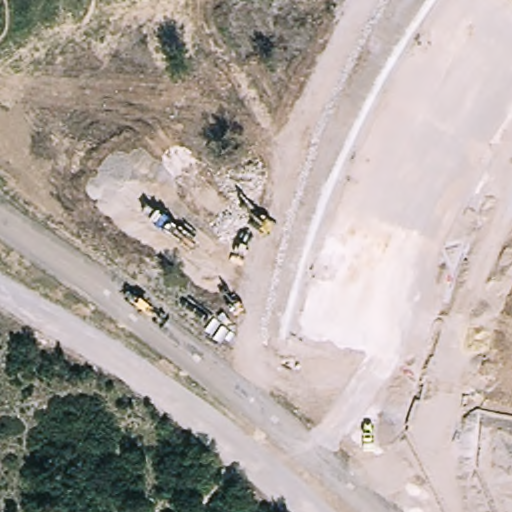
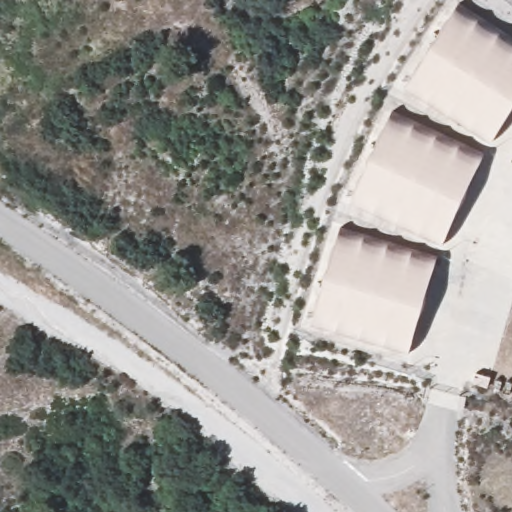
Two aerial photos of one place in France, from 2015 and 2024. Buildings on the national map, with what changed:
new [(399,87),(455,0),(457,0),(512,37),(512,108),(489,144),(399,87)]
new [(344,202),(388,108),(484,154),(441,247),(344,202)]
new [(304,326),(334,226),(438,258),(408,355),(304,326)]

